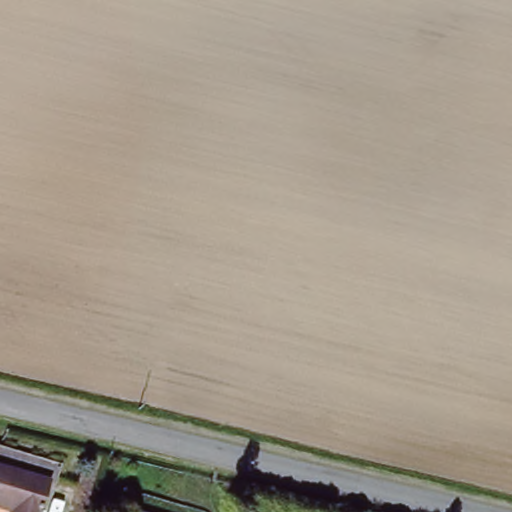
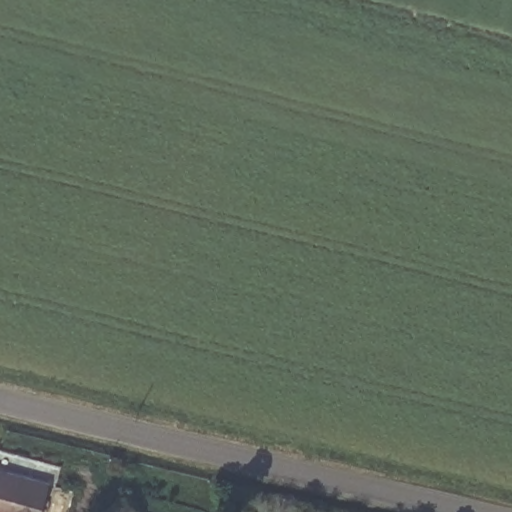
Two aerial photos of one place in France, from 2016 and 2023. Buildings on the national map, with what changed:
unchanged [(0,500),(0,462),(54,478),(45,512),(13,512),(15,504),(0,500)]
unchanged [(157,512),(144,512),(144,509),(157,512)]

